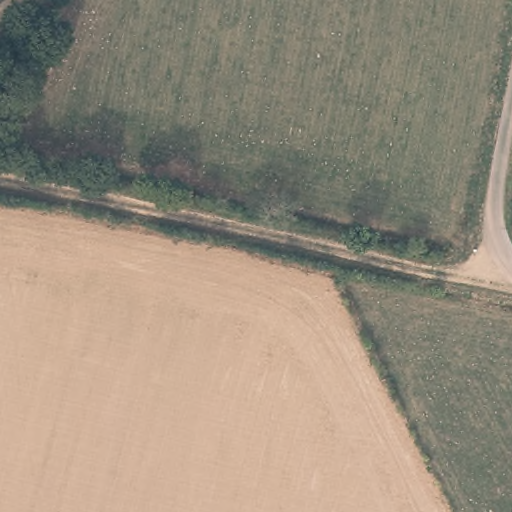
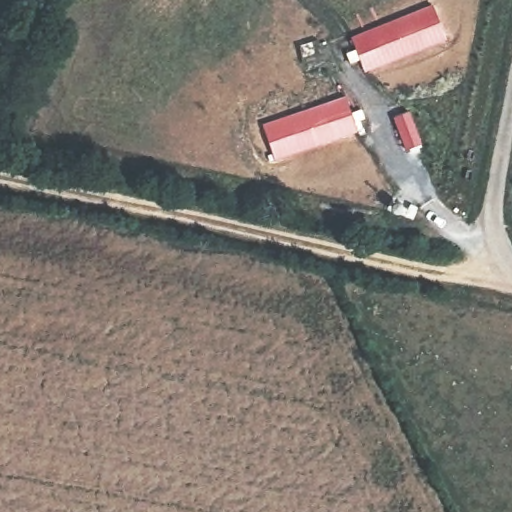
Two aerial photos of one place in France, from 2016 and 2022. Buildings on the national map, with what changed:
new [(431,4),(445,37),(363,71),(349,36),(431,4)]
new [(357,132),(273,161),(260,125),(342,95),(357,132)]

